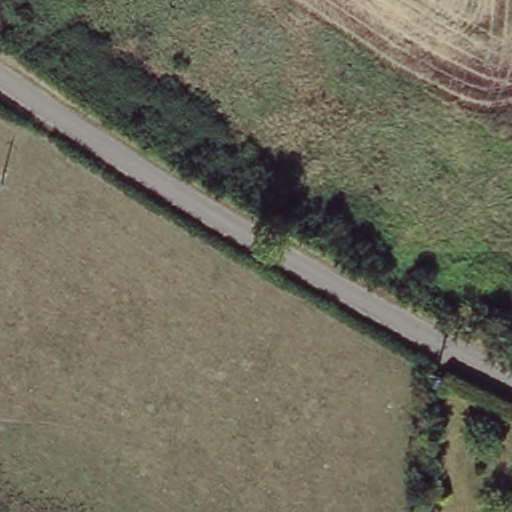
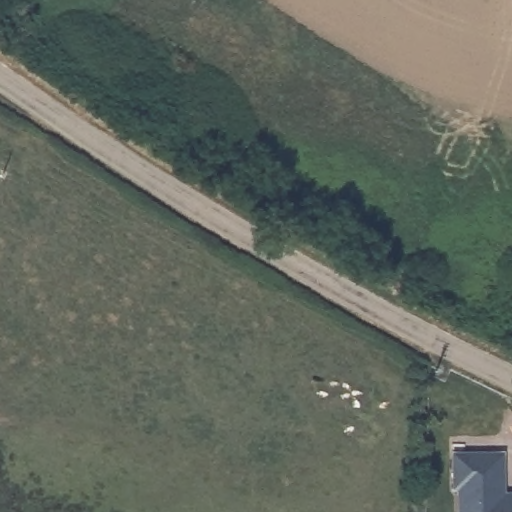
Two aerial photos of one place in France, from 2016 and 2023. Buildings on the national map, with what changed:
new [(505,454),(506,493),(512,493),(512,512),(456,512),(452,452),(505,454)]

